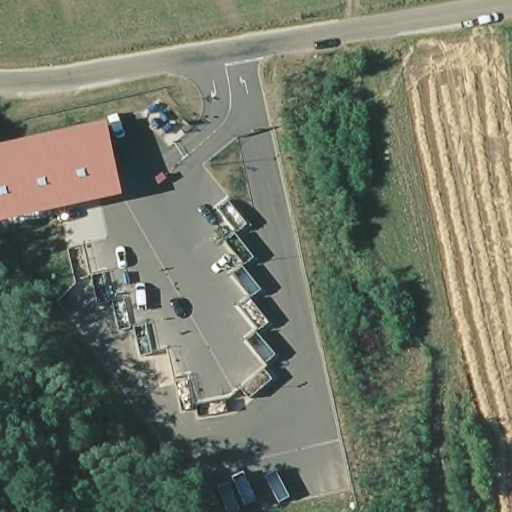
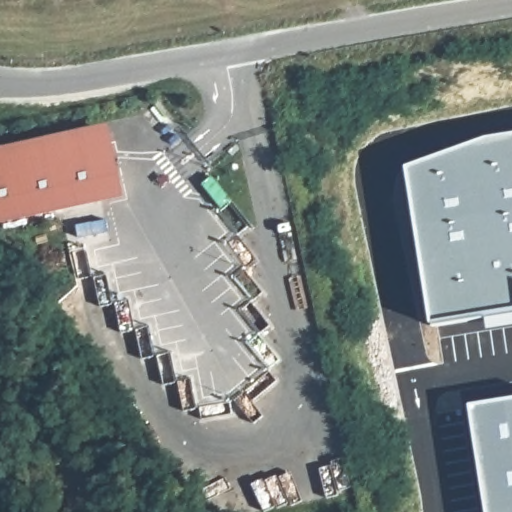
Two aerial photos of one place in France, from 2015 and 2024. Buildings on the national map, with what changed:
unchanged [(126,199),(0,227),(0,149),(109,124),(126,199)]
new [(404,166),(494,135),(512,132),(512,310),(427,323),(404,166)]
new [(484,512),(469,405),(512,397),(512,512),(484,512)]

